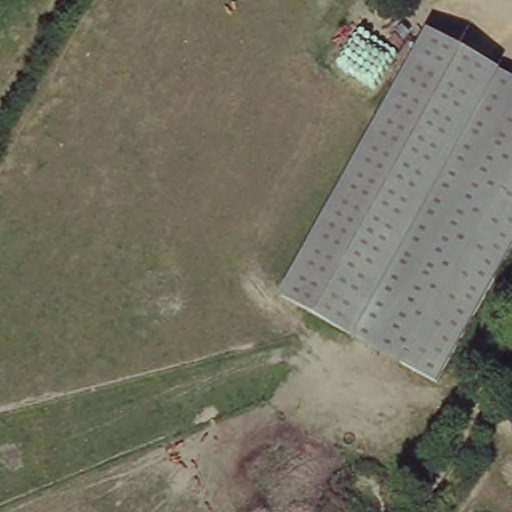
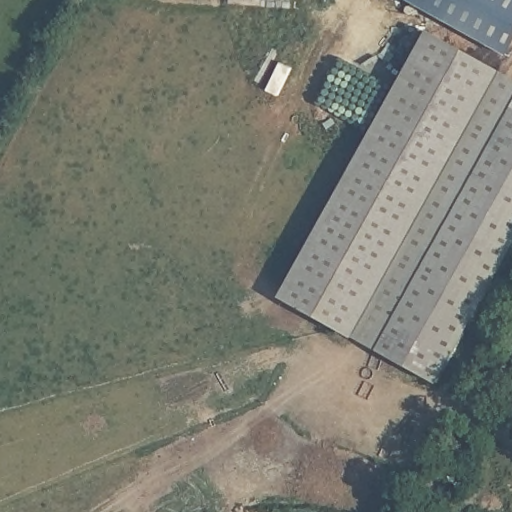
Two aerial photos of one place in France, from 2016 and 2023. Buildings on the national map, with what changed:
new [(406,0),(512,0),(512,51),(509,56),(406,0)]
unchanged [(496,73),(351,337),(280,297),(425,33),(496,73)]
unchanged [(512,82),(512,246),(437,380),(351,337),(496,73),(512,82)]

